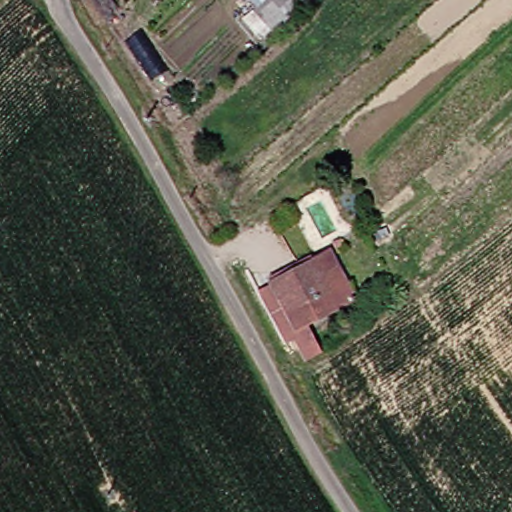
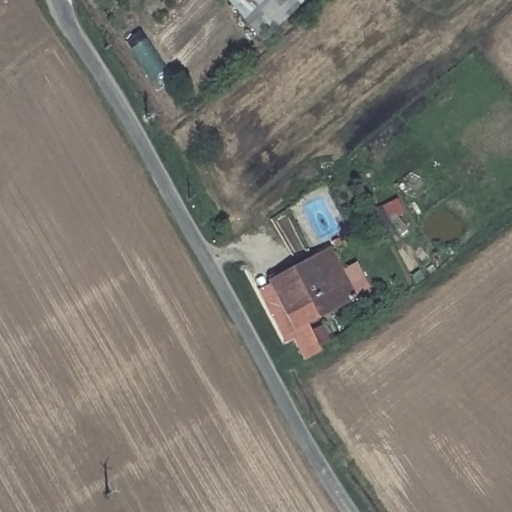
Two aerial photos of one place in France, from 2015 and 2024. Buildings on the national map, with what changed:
unchanged [(265,12),(277,0),(310,0),(282,27),(265,12)]
unchanged [(300,313),(282,278),(323,258),(344,247),(352,260),(373,295),(329,318),(309,328),(300,313)]
unchanged [(270,287),(292,325),(270,337),(250,299),(270,287)]

